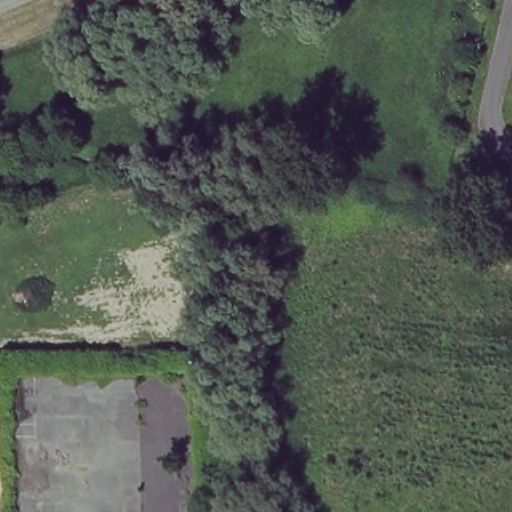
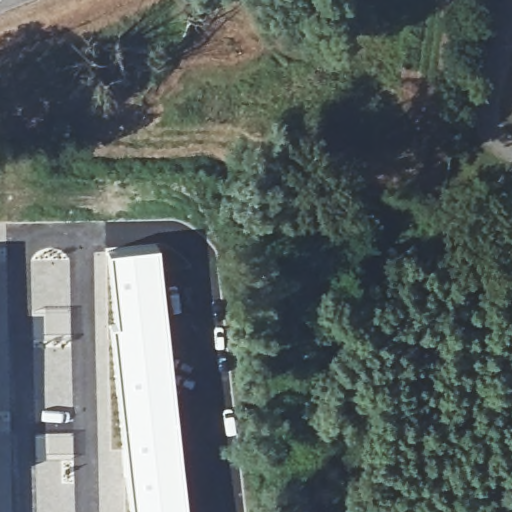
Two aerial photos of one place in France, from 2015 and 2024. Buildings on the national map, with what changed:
new [(173,378),(186,512),(129,512),(120,433),(110,364),(107,322),(113,321),(111,305),(109,305),(106,251),(157,244),(173,378)]
new [(73,433),(74,459),(44,461),(43,433),(73,433)]

